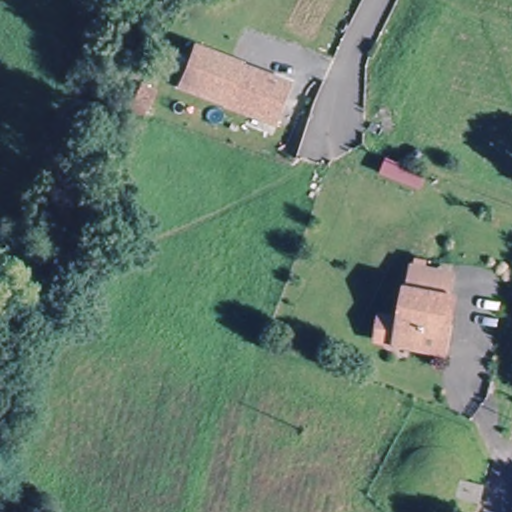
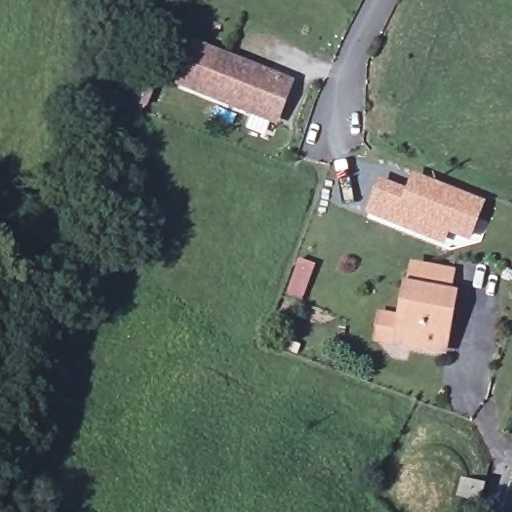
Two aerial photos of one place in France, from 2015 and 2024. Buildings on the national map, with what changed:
unchanged [(194,42),(287,80),(272,117),(179,80),(194,42)]
new [(406,191),(412,175),(485,203),(471,242),(450,234),(443,247),(364,217),(380,180),(406,191)]
unchanged [(403,322),(409,290),(411,291),(415,270),(455,277),(451,298),(454,298),(443,353),(398,345),(380,341),(383,318),(403,322)]

